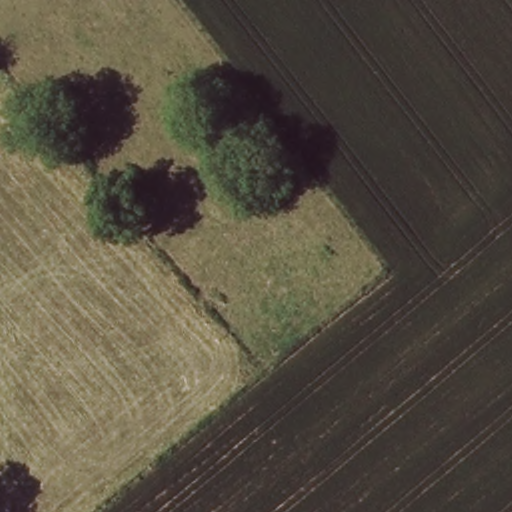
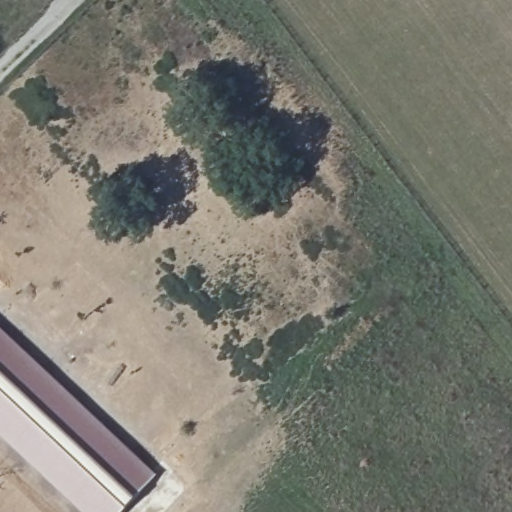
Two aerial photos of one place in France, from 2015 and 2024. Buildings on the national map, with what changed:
new [(157,475),(123,512),(80,512),(0,437),(0,328),(157,475)]

